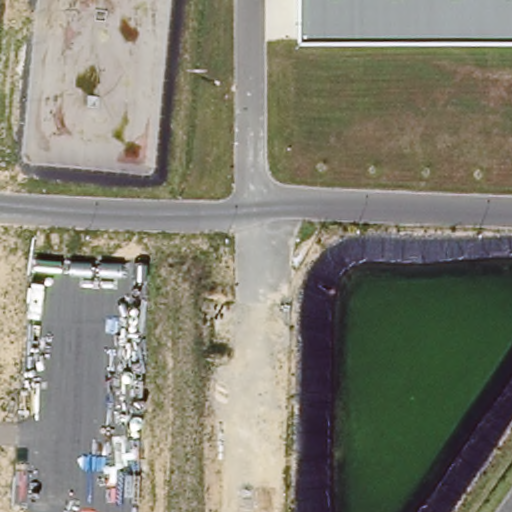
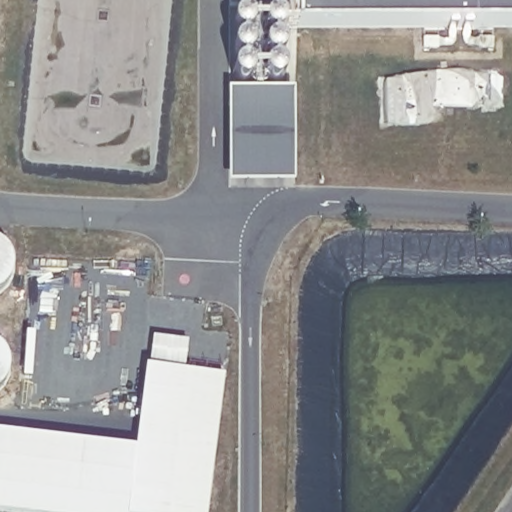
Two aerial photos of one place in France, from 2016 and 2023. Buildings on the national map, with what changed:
new [(227,6),(227,0),(297,0),(297,5),(227,6)]
unchanged [(297,26),(297,0),(512,0),(512,27),(297,26)]
new [(294,184),(226,183),(225,89),(292,91),(294,184)]
new [(18,512),(0,510),(0,429),(135,446),(145,364),(224,374),(204,512),(18,512)]

